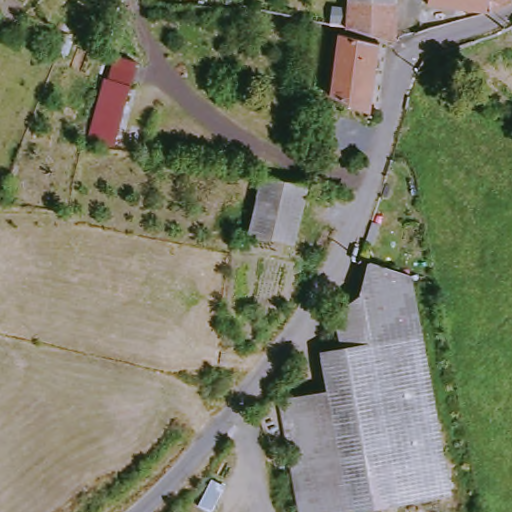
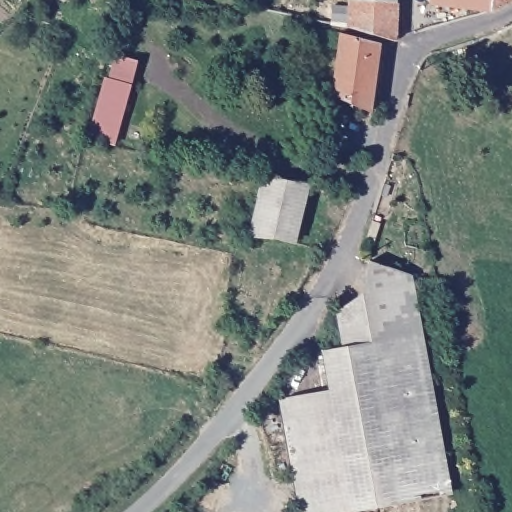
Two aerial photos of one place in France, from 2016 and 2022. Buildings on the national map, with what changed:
unchanged [(355,0),(403,0),(403,5),(405,40),(399,41),(354,26),(355,0)]
unchanged [(500,14),(437,9),(437,0),(512,0),(512,10),(500,14)]
unchanged [(384,42),(376,109),(336,94),(343,34),(384,42)]
unchanged [(121,62),(142,67),(119,159),(96,154),(121,62)]
unchanged [(265,181),(315,189),(300,244),(253,234),(265,181)]
unchanged [(456,492),(350,512),(306,512),(286,403),(336,394),(329,351),(354,345),(347,311),(367,295),(376,261),(417,273),(456,492)]

